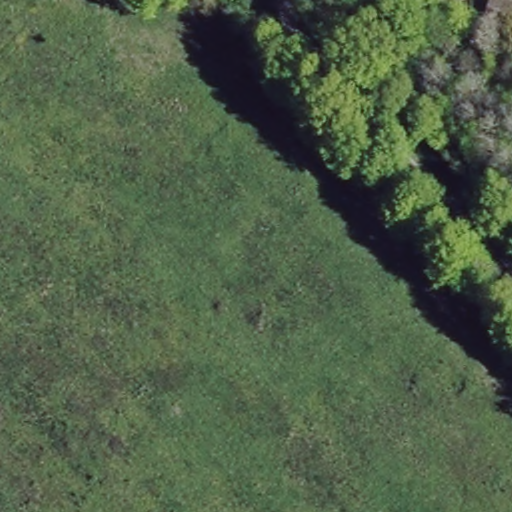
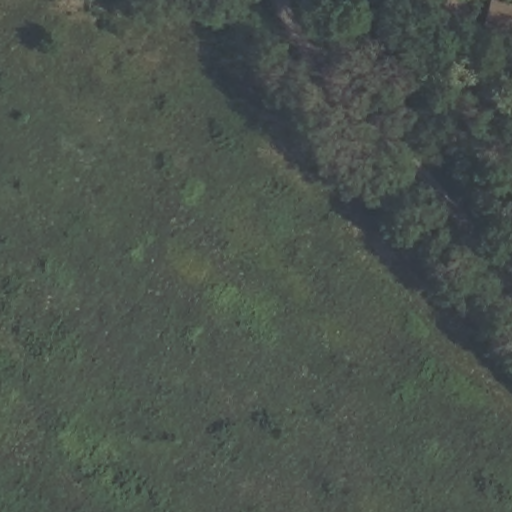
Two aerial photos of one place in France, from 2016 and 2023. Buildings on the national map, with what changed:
unchanged [(512,27),(479,17),(484,0),(497,0),(512,4),(512,27)]

